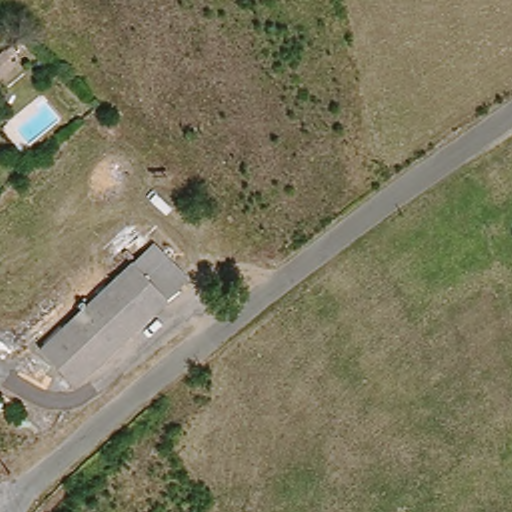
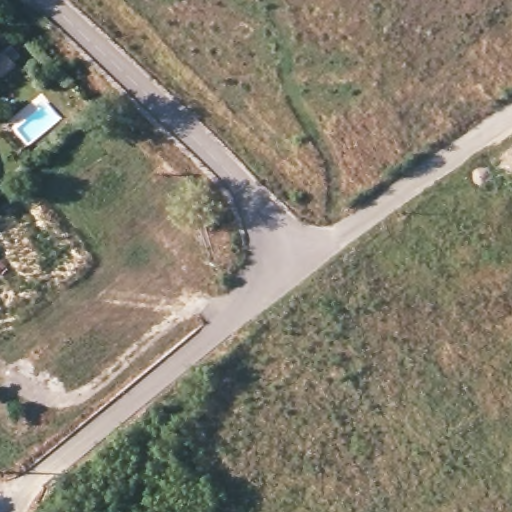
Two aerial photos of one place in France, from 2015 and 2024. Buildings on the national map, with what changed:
demolished [(146,246),(180,280),(76,385),(42,352),(146,246)]

